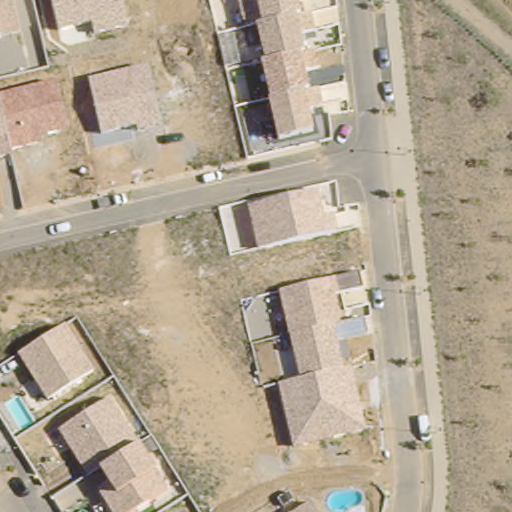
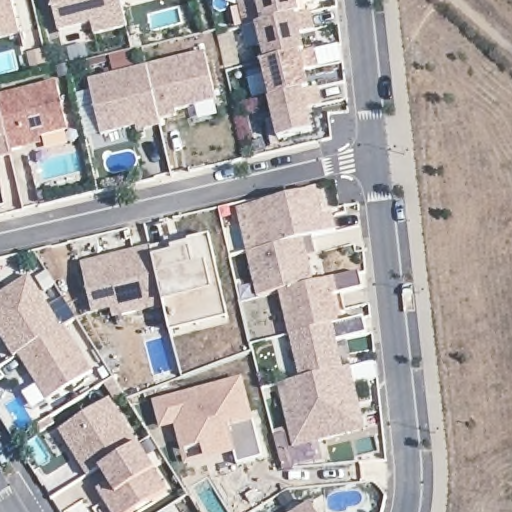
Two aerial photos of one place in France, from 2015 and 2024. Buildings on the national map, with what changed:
unchanged [(14,0),(21,31),(3,38),(0,39),(0,0),(14,0)]
unchanged [(121,0),(126,28),(95,35),(92,23),(59,30),(52,0),(121,0)]
unchanged [(265,60),(256,25),(262,24),(256,0),(298,0),(301,17),(312,14),(316,31),(301,34),(306,53),(316,48),(321,67),(306,70),(310,90),(320,86),(325,104),(310,109),(313,130),(278,138),(260,62),(265,60)]
new [(150,66),(205,53),(216,101),(178,110),(180,116),(161,120),(150,66)]
unchanged [(89,80),(150,66),(162,127),(137,133),(136,126),(101,133),(89,80)]
unchanged [(58,86),(70,131),(43,138),(45,144),(11,151),(12,156),(0,159),(0,100),(58,86)]
unchanged [(249,206),(318,190),(324,217),(335,214),(337,231),(258,249),(249,206)]
new [(237,209),(249,206),(258,249),(312,237),(317,255),(308,256),(315,283),(281,291),(257,296),(237,209)]
new [(187,241),(209,236),(217,273),(209,275),(216,306),(166,317),(163,305),(150,249),(167,245),(187,241)]
new [(150,249),(163,305),(112,317),(110,308),(92,312),(81,265),(150,249)]
new [(0,335),(0,291),(25,276),(27,280),(41,272),(49,285),(36,293),(56,327),(12,354),(0,335)]
new [(216,306),(209,275),(217,273),(228,318),(170,332),(166,317),(216,306)]
unchanged [(278,383),(300,378),(281,291),(360,273),(363,289),(337,295),(343,323),(365,319),(368,334),(340,342),(345,368),(351,367),(365,429),(293,446),(278,383)]
unchanged [(12,354),(60,324),(88,370),(42,401),(12,354)]
new [(238,382),(250,423),(253,422),(263,459),(238,466),(233,452),(205,460),(201,447),(183,452),(175,424),(161,429),(155,406),(238,382)]
unchanged [(100,494),(111,486),(100,469),(86,476),(60,431),(110,399),(141,445),(155,469),(169,491),(134,512),(111,512),(100,494)]
unchanged [(311,502),(316,512),(296,512),(311,502)]

